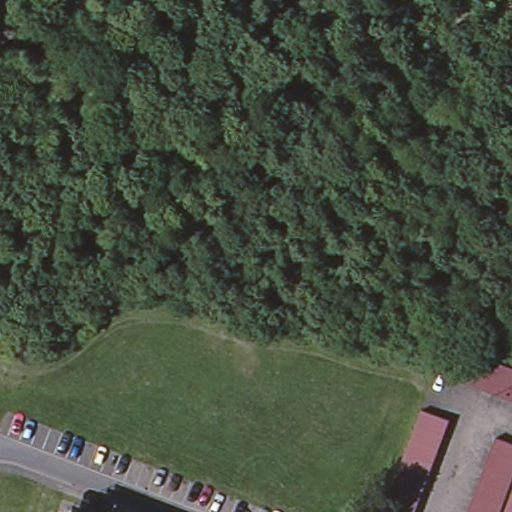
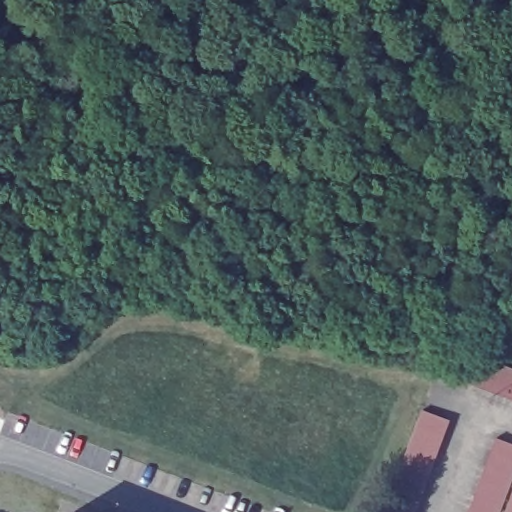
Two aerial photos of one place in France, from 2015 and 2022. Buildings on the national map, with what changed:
unchanged [(494,391),(479,385),(464,380),(449,375),(436,369),(445,340),(459,346),(474,351),(489,357),(504,362),(512,366),(512,398),(508,396),(494,391)]
unchanged [(405,449),(411,435),(416,420),(421,406),(447,417),(442,431),(437,446),(431,461),(426,474),(421,489),(415,504),(412,512),(381,512),(383,508),(388,494),(394,478),(399,464),(405,449)]
unchanged [(474,491),(479,477),(484,463),(489,448),(494,434),(512,442),(512,472),(511,474),(506,489),(500,503),(497,512),(466,512),(468,506),(474,491)]
unchanged [(511,492),(512,488),(512,512),(503,512),(505,506),(511,492)]

